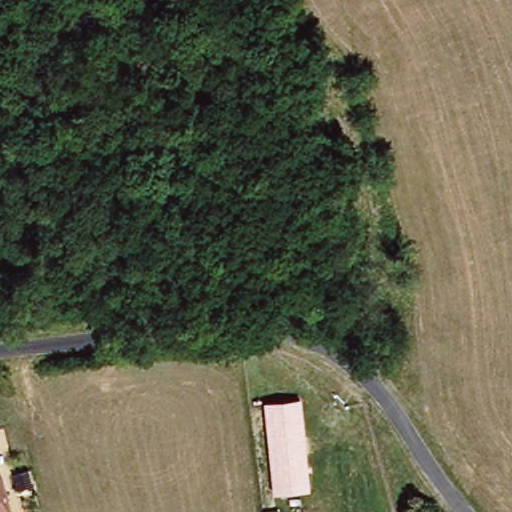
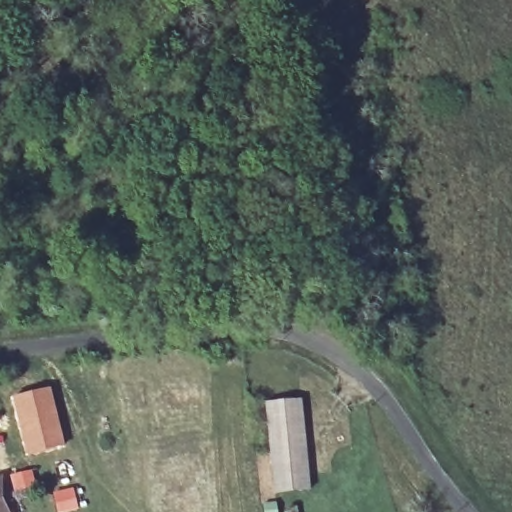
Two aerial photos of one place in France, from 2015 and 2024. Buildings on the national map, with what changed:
new [(50,386),(64,445),(26,455),(10,395),(50,386)]
unchanged [(310,488),(273,492),(264,403),(300,398),(310,488)]
unchanged [(3,474),(13,512),(0,512),(0,475),(3,474)]

